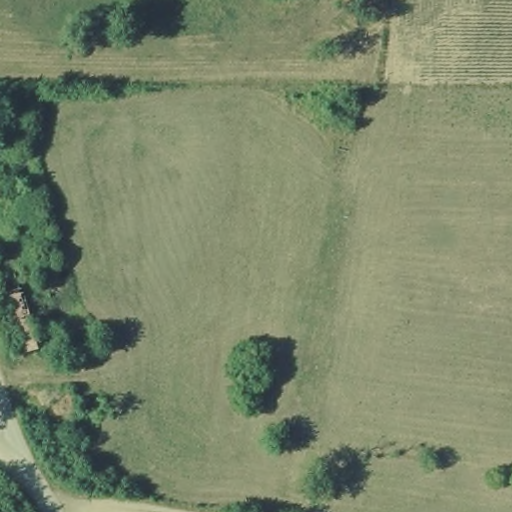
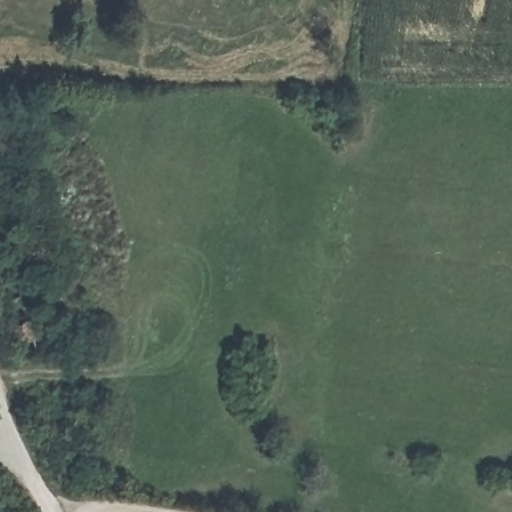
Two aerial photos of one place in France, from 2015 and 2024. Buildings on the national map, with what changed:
unchanged [(0,257),(17,252),(44,349),(18,357),(0,295),(0,257)]

